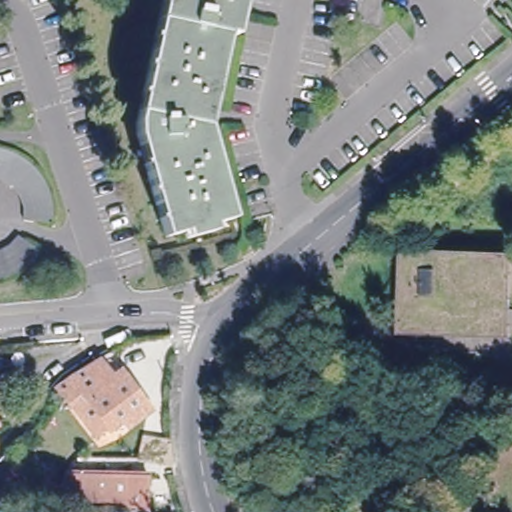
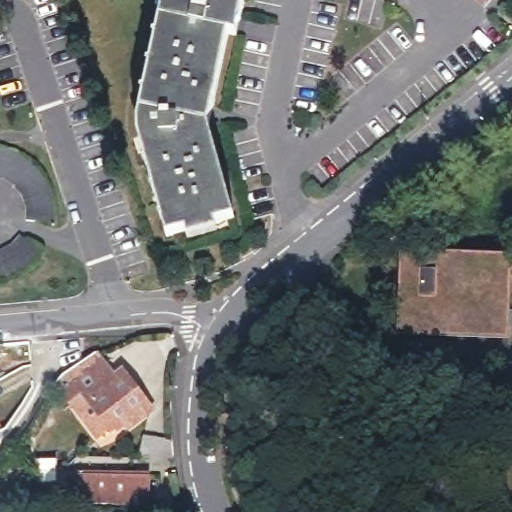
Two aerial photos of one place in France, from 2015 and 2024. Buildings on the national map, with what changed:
unchanged [(215,30),(198,120),(224,216),(169,235),(133,124),(154,0),(163,0),(230,0),(225,32),(215,30)]
unchanged [(5,147),(11,149),(35,165),(53,191),(53,220),(26,216),(24,193),(5,175),(0,174),(0,147),(5,147)]
unchanged [(22,269),(0,276),(0,248),(7,246),(19,234),(44,250),(22,269)]
unchanged [(485,318),(486,295),(495,295),(498,246),(512,247),(512,266),(508,334),(394,330),(399,244),(409,245),(405,316),(485,318)]
unchanged [(498,246),(495,295),(486,295),(485,318),(405,316),(409,245),(498,246)]
unchanged [(83,406),(76,396),(82,391),(81,389),(86,385),(89,386),(112,366),(123,380),(128,375),(156,408),(140,423),(134,417),(123,426),(109,438),(83,406)]
unchanged [(149,460),(153,440),(176,443),(178,465),(149,460)]
unchanged [(67,467),(148,475),(147,512),(140,512),(64,501),(67,467)]

